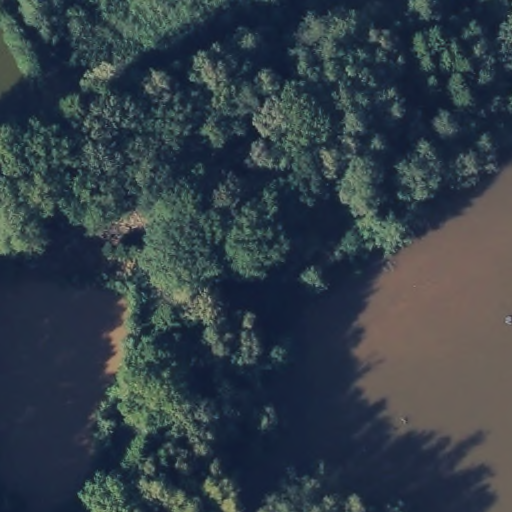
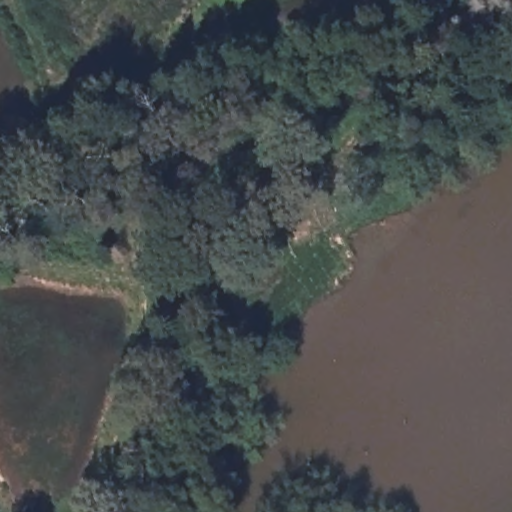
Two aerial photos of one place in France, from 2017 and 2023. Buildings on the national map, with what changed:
unchanged [(142,93),(148,107),(128,114),(123,101),(142,93)]

